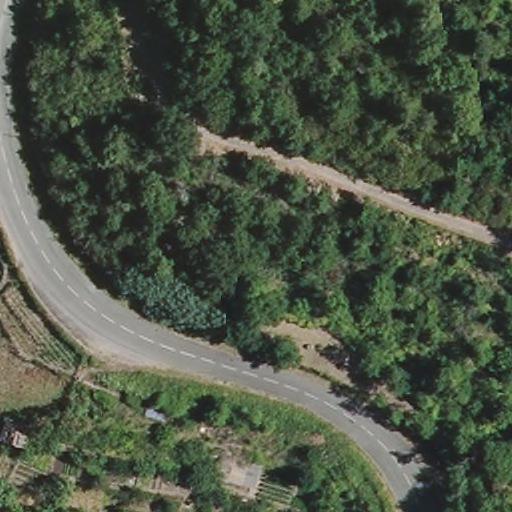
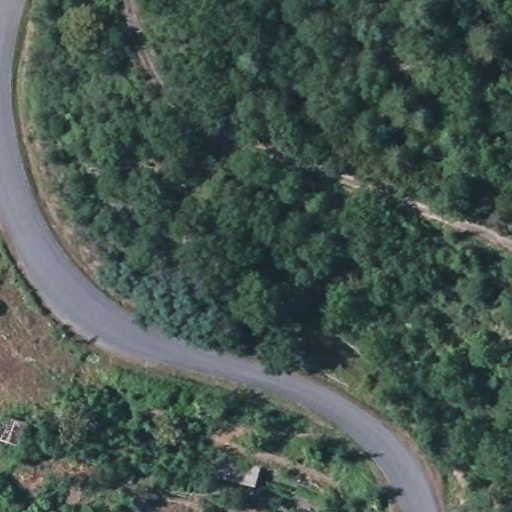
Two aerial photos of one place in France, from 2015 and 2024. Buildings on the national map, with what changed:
unchanged [(26,425),(21,449),(0,443),(0,421),(0,419),(26,425)]

